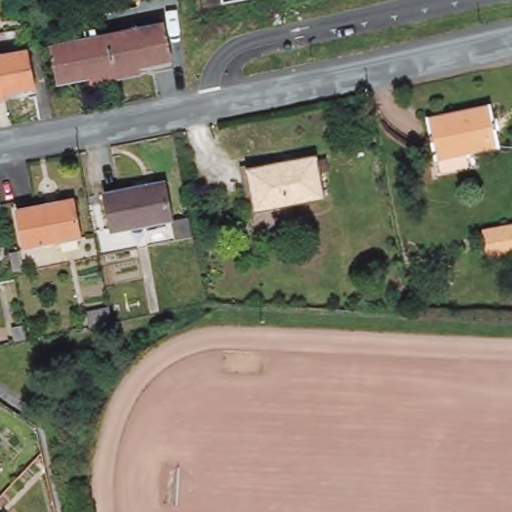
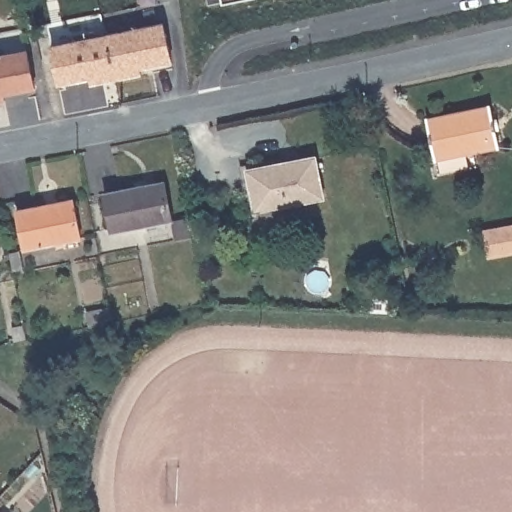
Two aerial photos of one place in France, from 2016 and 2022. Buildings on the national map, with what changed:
unchanged [(222,3),(221,0),(238,0),(222,3)]
unchanged [(164,23),(171,62),(140,67),(141,74),(115,79),(106,34),(164,23)]
unchanged [(115,79),(90,84),(89,79),(57,84),(50,45),(106,34),(115,79)]
unchanged [(36,89),(6,95),(6,101),(0,102),(0,56),(28,51),(36,89)]
unchanged [(497,145),(435,157),(427,118),(489,105),(497,145)]
unchanged [(319,195),(253,209),(246,168),(311,155),(319,195)]
unchanged [(170,218),(111,230),(103,192),(162,180),(170,218)]
unchanged [(80,237),(27,248),(19,209),(73,198),(80,237)]
unchanged [(487,255),(485,248),(482,231),(512,225),(512,250),(487,255)]
unchanged [(111,323),(88,328),(86,317),(109,313),(111,323)]

